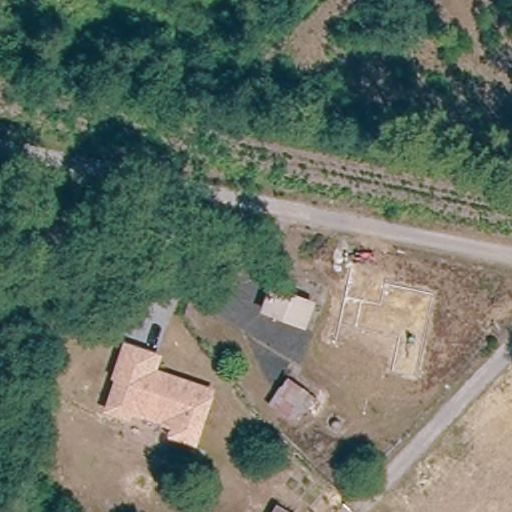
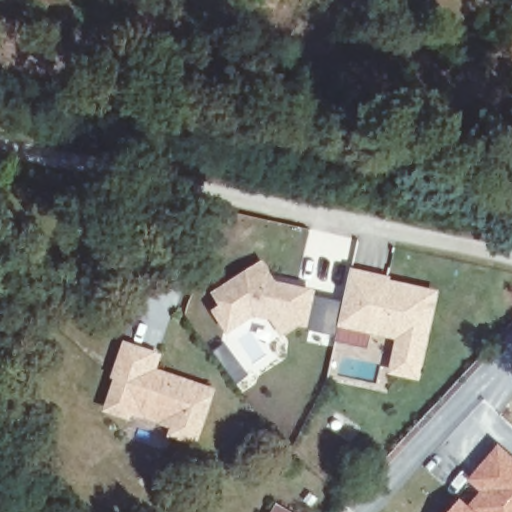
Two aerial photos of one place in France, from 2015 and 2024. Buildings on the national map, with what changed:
new [(276,282),(316,291),(315,296),(346,302),(341,326),(340,336),(299,326),(280,338),(270,320),(254,318),(227,335),(211,311),(220,306),(211,294),(263,260),(276,282)]
new [(353,271),(390,279),(388,285),(384,306),(347,298),(353,271)]
demolished [(310,297),(302,320),(260,307),(266,282),(310,297)]
new [(384,306),(388,285),(436,296),(418,379),(395,374),(402,339),(341,326),(347,298),(384,306)]
new [(374,334),(370,351),(337,344),(341,326),(374,334)]
unchanged [(121,413),(101,406),(112,374),(110,373),(120,343),(135,348),(150,353),(145,367),(204,387),(186,438),(165,431),(168,424),(123,408),(121,413)]
new [(509,512),(476,512),(512,470),(512,509),(509,512)]
new [(468,509),(471,512),(465,512),(468,509)]
unchanged [(280,510),(284,512),(279,512),(280,510)]
new [(455,510),(457,512),(452,512),(455,510)]

